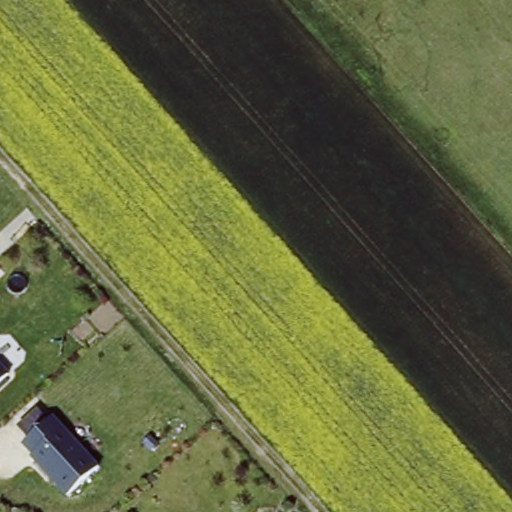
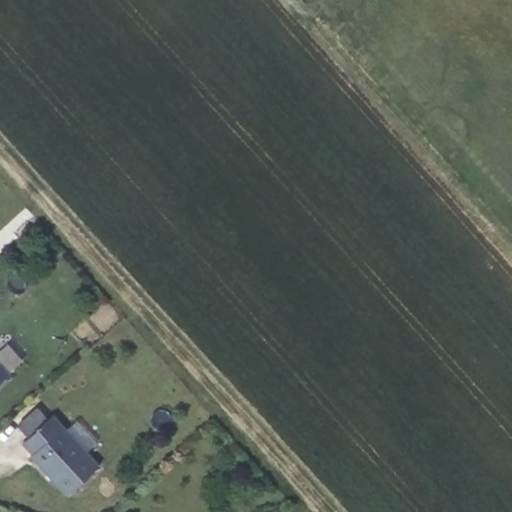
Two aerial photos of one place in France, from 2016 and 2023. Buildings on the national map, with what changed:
unchanged [(0,362),(9,371),(0,378),(0,362)]
unchanged [(101,464),(66,494),(27,455),(32,450),(22,439),(52,411),(101,464)]

